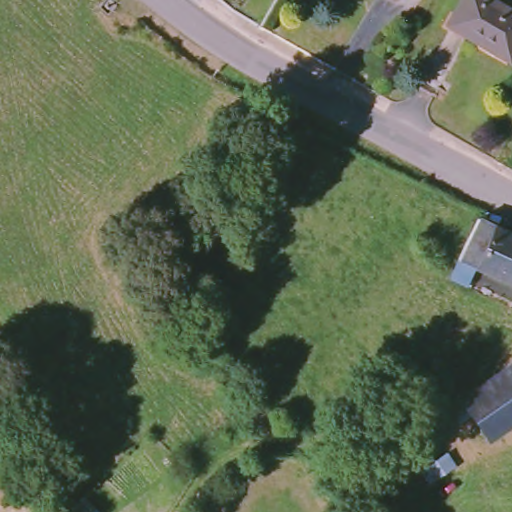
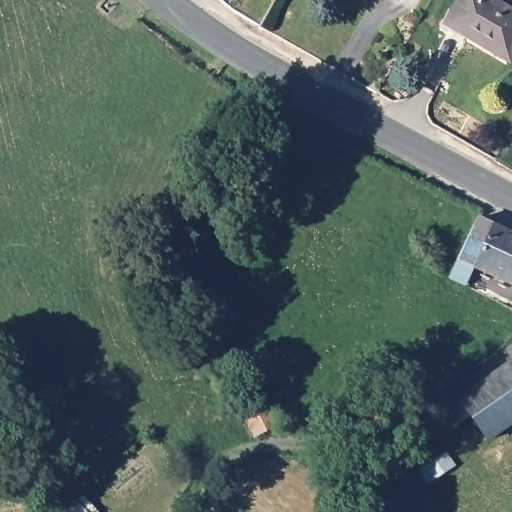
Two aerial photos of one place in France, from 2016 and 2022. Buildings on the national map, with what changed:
unchanged [(402,2),(400,0),(403,0),(402,2)]
unchanged [(512,56),(455,21),(467,0),(501,0),(512,6),(512,56)]
unchanged [(470,261),(488,220),(512,231),(512,274),(510,280),(470,261)]
unchanged [(466,258),(456,278),(442,271),(452,252),(466,258)]
unchanged [(512,306),(505,303),(512,290),(512,306)]
unchanged [(512,426),(493,439),(465,398),(493,378),(512,366),(512,426)]
unchanged [(105,512),(71,512),(88,495),(105,512)]

